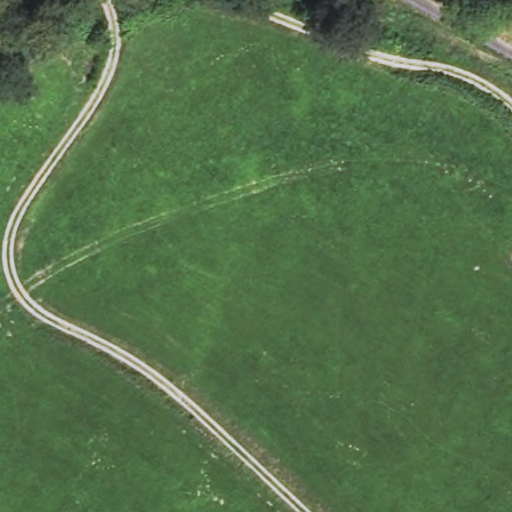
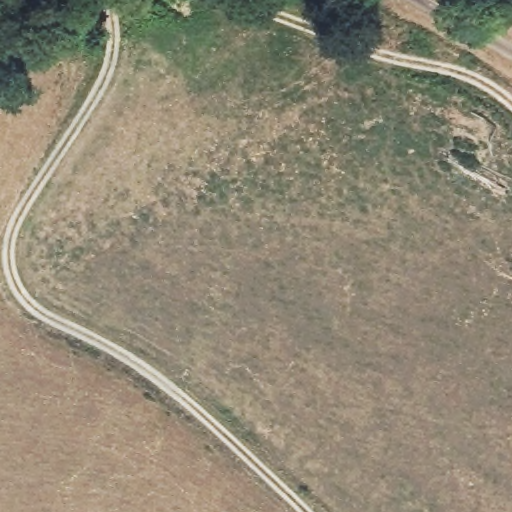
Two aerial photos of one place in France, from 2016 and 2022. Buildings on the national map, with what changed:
[]

